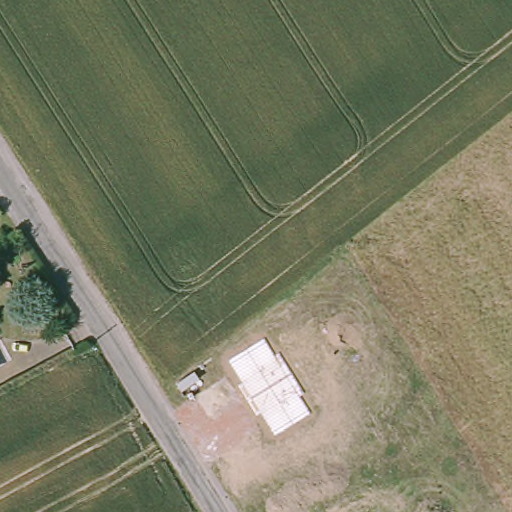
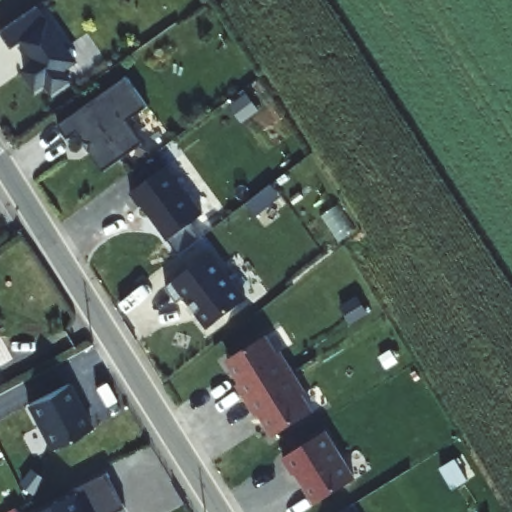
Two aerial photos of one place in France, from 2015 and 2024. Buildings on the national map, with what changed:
new [(49,19),(78,61),(66,69),(73,81),(50,95),(44,85),(35,92),(20,70),(31,63),(18,43),(10,48),(0,33),(0,31),(35,7),(46,21),(49,19)]
new [(146,105),(128,120),(143,141),(105,170),(76,130),(68,137),(59,126),(126,78),(146,105)]
new [(172,167),(208,215),(174,241),(148,206),(146,207),(136,194),(172,167)]
new [(248,297),(209,328),(184,296),(178,299),(168,287),(212,252),(248,297)]
unchanged [(238,383),(242,380),(228,359),(265,336),(274,354),(279,351),(291,371),(247,399),(238,383)]
unchanged [(274,434),(261,411),(256,414),(247,399),(291,371),(304,392),(299,394),(311,412),(274,434)]
new [(94,426),(49,449),(26,405),(70,384),(94,426)]
new [(324,428),(354,478),(316,502),(296,470),(293,471),(281,453),(324,428)]
new [(76,490),(108,474),(125,510),(122,512),(44,512),(78,495),(76,490)]

